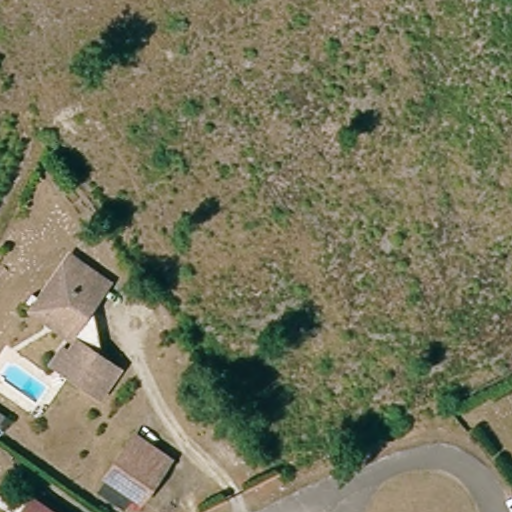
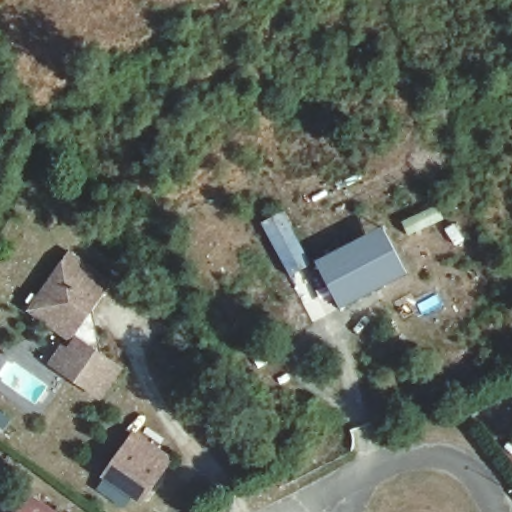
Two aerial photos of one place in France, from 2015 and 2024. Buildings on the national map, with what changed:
new [(342,309),(316,260),(382,226),(407,273),(342,309)]
unchanged [(86,313),(85,314),(90,351),(111,365),(92,393),(50,364),(67,339),(64,333),(25,306),(30,299),(62,253),(82,266),(102,280),(93,292),(85,304),(86,313)]
unchanged [(13,416),(6,426),(0,422),(0,407),(13,416)]
unchanged [(104,477),(122,450),(131,438),(166,462),(157,474),(139,501),(104,477)]
unchanged [(58,512),(14,512),(29,492),(58,512)]

